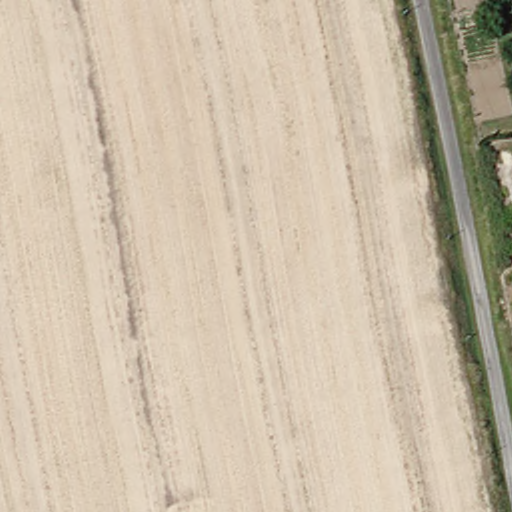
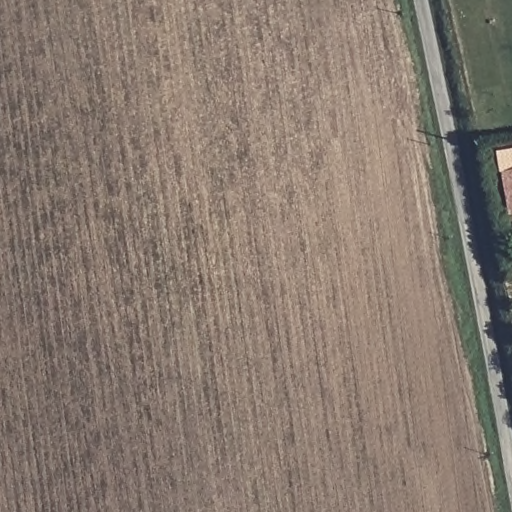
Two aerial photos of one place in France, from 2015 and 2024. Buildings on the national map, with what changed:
new [(497,151),(512,148),(512,214),(508,215),(497,151)]

